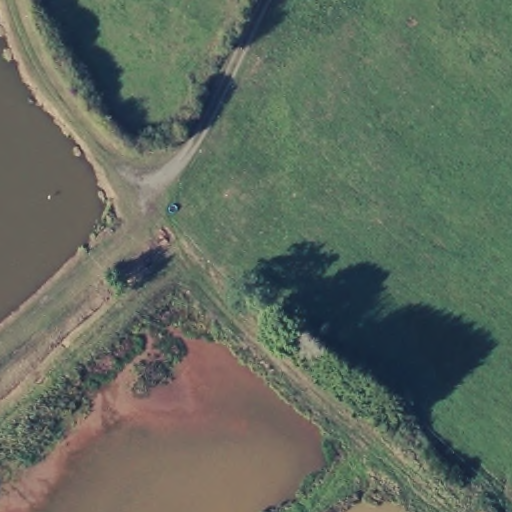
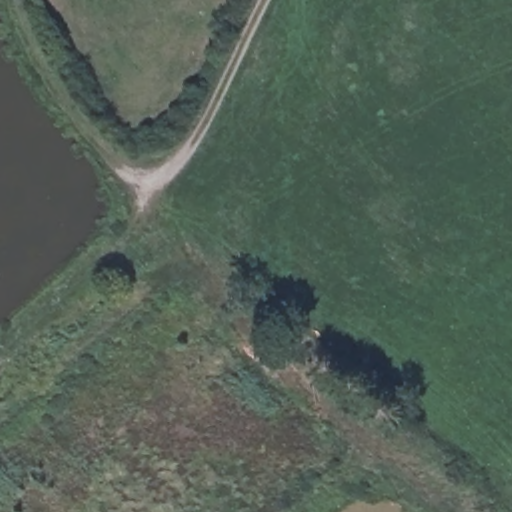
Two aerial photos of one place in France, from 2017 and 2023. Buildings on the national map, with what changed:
[]

